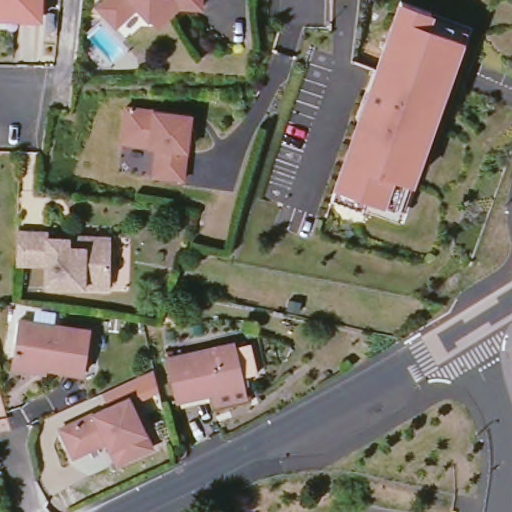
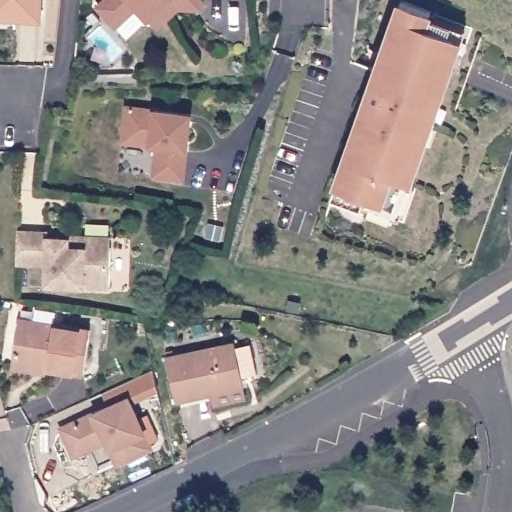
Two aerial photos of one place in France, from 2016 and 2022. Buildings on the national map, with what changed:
unchanged [(0,22),(0,0),(44,0),(43,22),(0,22)]
unchanged [(138,7),(117,27),(99,7),(106,0),(202,0),(202,8),(180,7),(157,28),(150,19),(138,7)]
unchanged [(347,165),(352,153),(348,151),(362,112),(367,114),(373,99),(367,96),(372,83),(381,85),(387,69),(378,67),(387,40),(392,41),(396,29),(392,28),(402,0),(412,0),(433,8),(428,21),(457,31),(447,59),(454,61),(439,104),(432,101),(421,135),(427,137),(412,179),(406,177),(396,204),(367,194),(362,205),(332,194),(344,164),(347,165)]
unchanged [(185,114),(192,115),(191,121),(185,179),(155,176),(157,146),(123,143),(127,108),(185,114)]
unchanged [(22,232),(54,234),(54,240),(67,240),(75,240),(75,238),(94,239),(114,239),(114,245),(113,290),(49,288),(50,268),(21,267),(22,232)]
unchanged [(49,370),(50,364),(15,359),(21,324),(92,334),(85,376),(49,370)]
unchanged [(207,390),(173,396),(164,356),(234,340),(236,348),(253,344),(259,373),(242,377),(245,394),(210,402),(207,390)]
unchanged [(111,450),(107,442),(75,457),(62,431),(128,397),(152,446),(127,459),(119,464),(111,450)]

